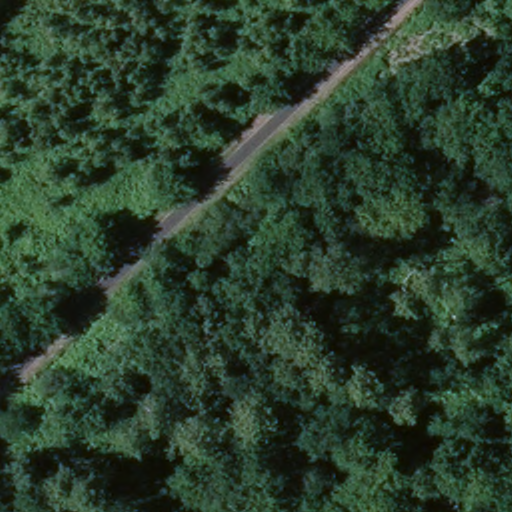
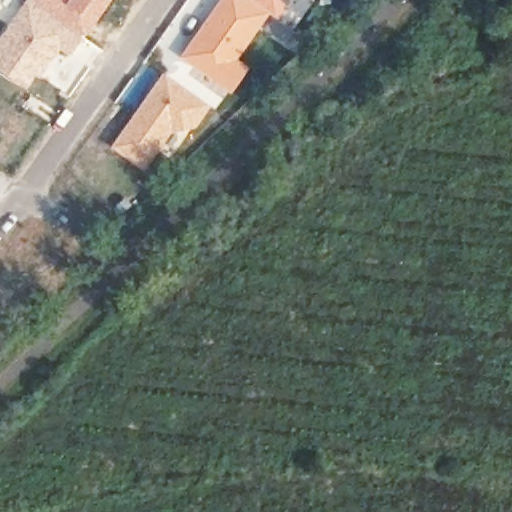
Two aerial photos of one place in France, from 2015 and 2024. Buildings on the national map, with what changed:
new [(31,0),(83,37),(67,57),(58,51),(27,89),(0,71),(0,32),(22,0),(31,0)]
new [(31,0),(109,0),(83,37),(31,0)]
new [(221,82),(186,59),(196,45),(206,30),(225,0),(250,0),(268,12),(235,61),(247,70),(233,90),(221,82)]
new [(268,12),(250,0),(289,0),(276,19),(268,12)]
new [(159,90),(168,76),(212,106),(198,125),(174,130),(146,168),(118,148),(146,107),(159,90)]

